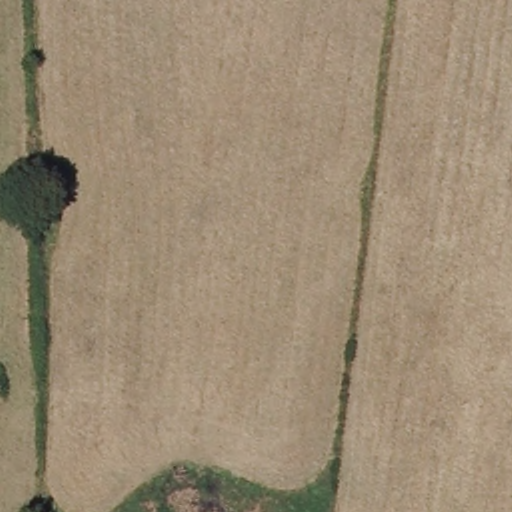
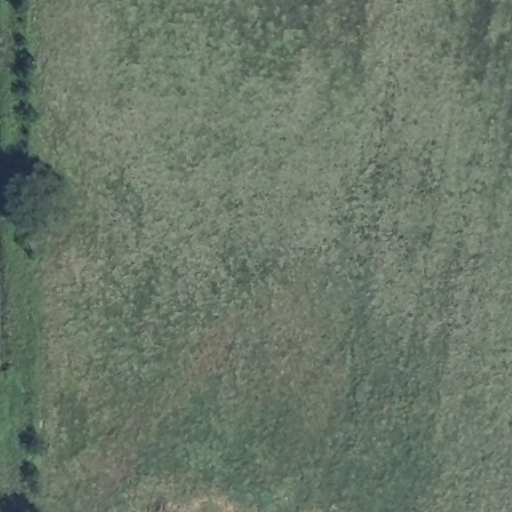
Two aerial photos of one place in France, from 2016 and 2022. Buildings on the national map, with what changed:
[]

